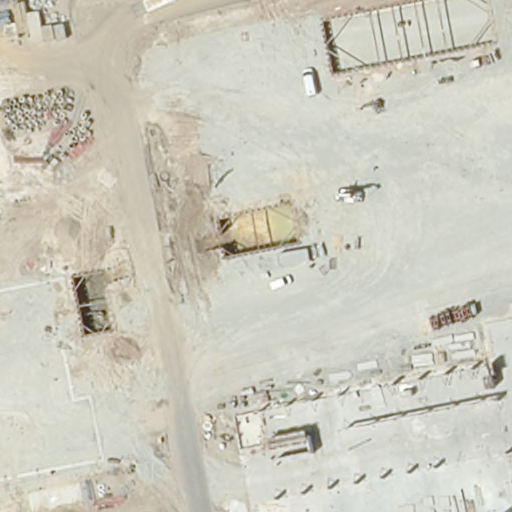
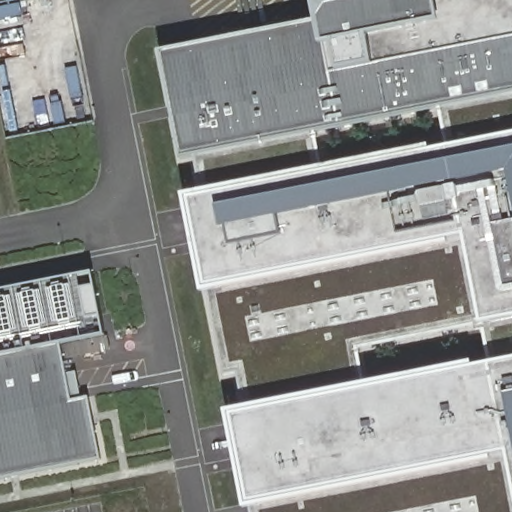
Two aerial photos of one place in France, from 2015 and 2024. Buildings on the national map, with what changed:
new [(435,108),(314,134),(320,169),(199,193),(193,157),(183,159),(161,53),(320,22),(324,48),(332,47),(338,74),(378,65),(373,36),(443,23),(439,0),(512,0),(512,136),(444,150),(435,108)]
new [(443,23),(373,36),(378,65),(338,74),(332,47),(324,48),(320,22),(316,5),(337,0),(439,0),(443,23)]
new [(320,169),(431,147),(432,152),(444,150),(512,136),(512,318),(484,323),(467,238),(450,241),(451,245),(210,292),(204,293),(186,196),(199,193),(320,169)]
new [(210,292),(451,245),(450,241),(467,238),(484,323),(360,348),(365,384),(244,408),(237,376),(226,377),(210,292)]
new [(78,371),(83,399),(90,397),(102,460),(0,480),(0,290),(96,272),(108,335),(62,344),(68,373),(78,371)]
new [(512,360),(491,364),(484,323),(512,318),(512,360)]
new [(492,456),(492,461),(254,509),(247,510),(228,411),(244,408),(365,384),(474,363),(475,367),(491,364),(512,360),(512,466),(510,453),(492,456)]
new [(492,461),(492,456),(510,453),(512,466),(512,512),(254,512),(254,509),(492,461)]

